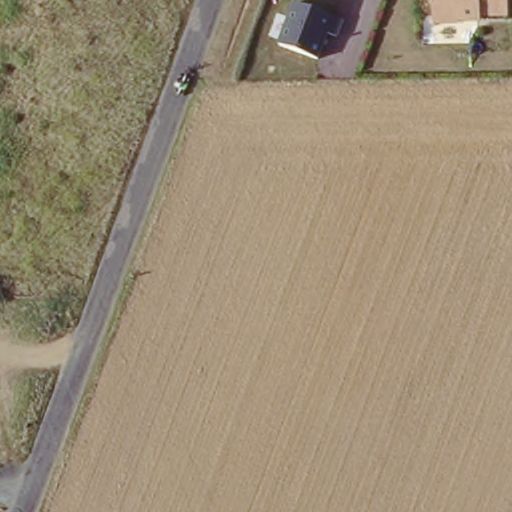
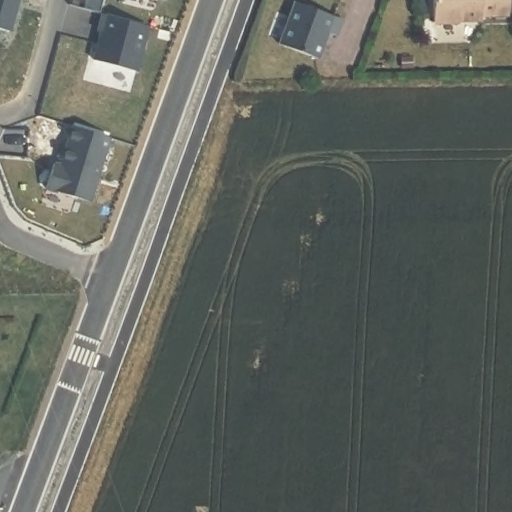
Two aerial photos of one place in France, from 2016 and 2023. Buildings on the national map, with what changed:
new [(10,31),(0,28),(0,0),(18,0),(10,31)]
unchanged [(297,0),(340,18),(336,34),(328,31),(320,55),(282,42),(297,0)]
unchanged [(512,5),(512,17),(486,17),(486,20),(438,24),(437,0),(512,0),(512,5)]
new [(148,25),(136,72),(92,61),(105,15),(148,25)]
new [(110,137),(91,204),(45,191),(54,160),(60,162),(71,126),(110,137)]

